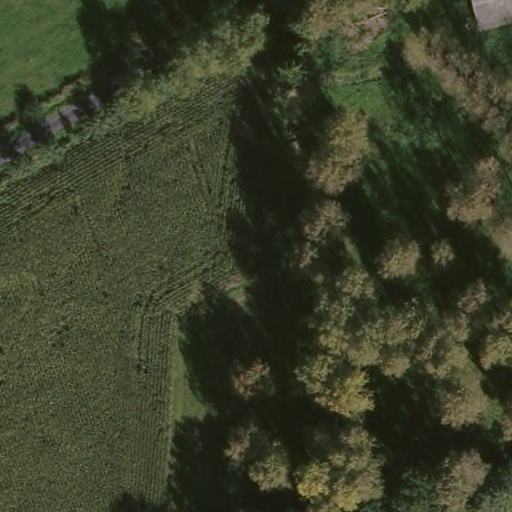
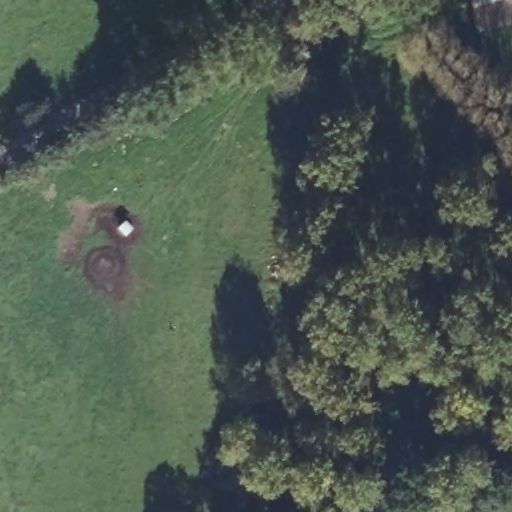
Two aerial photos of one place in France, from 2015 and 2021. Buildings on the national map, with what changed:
unchanged [(471,0),(512,0),(512,25),(480,34),(471,0)]

